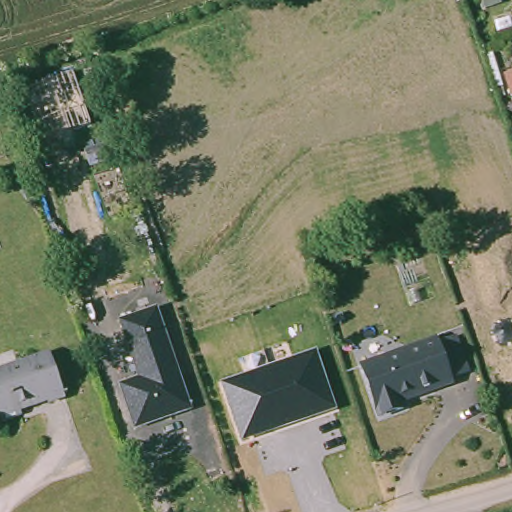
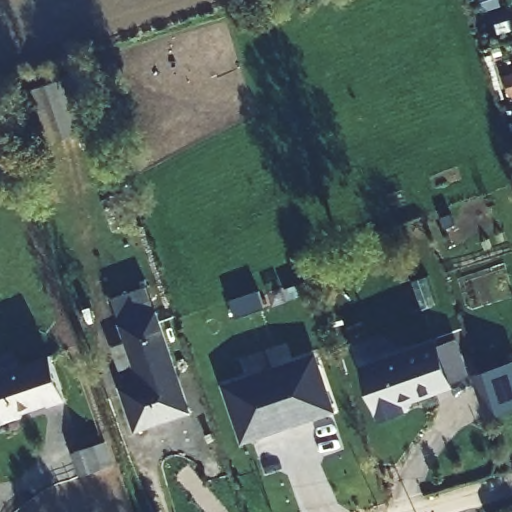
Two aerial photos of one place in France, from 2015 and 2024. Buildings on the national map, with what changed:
unchanged [(102,300),(132,292),(137,306),(91,318),(81,287),(96,283),(102,300)]
unchanged [(122,387),(140,381),(120,322),(157,310),(190,410),(137,427),(122,387)]
unchanged [(408,400),(407,397),(391,403),(395,413),(370,421),(353,371),(428,345),(430,350),(447,343),(459,377),(442,382),(444,387),(408,400)]
unchanged [(18,362),(25,360),(52,350),(70,400),(44,410),(41,403),(37,405),(32,407),(18,362)]
unchanged [(337,411),(240,443),(222,383),(316,352),(337,411)]
new [(473,375),(512,361),(512,407),(487,415),(473,375)]
unchanged [(9,415),(12,421),(0,425),(0,369),(18,362),(32,407),(9,415)]

